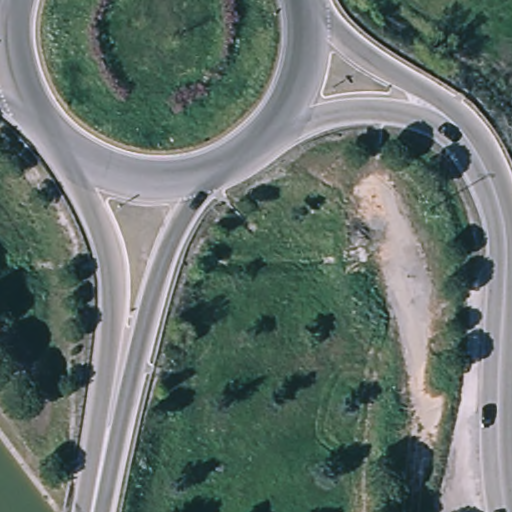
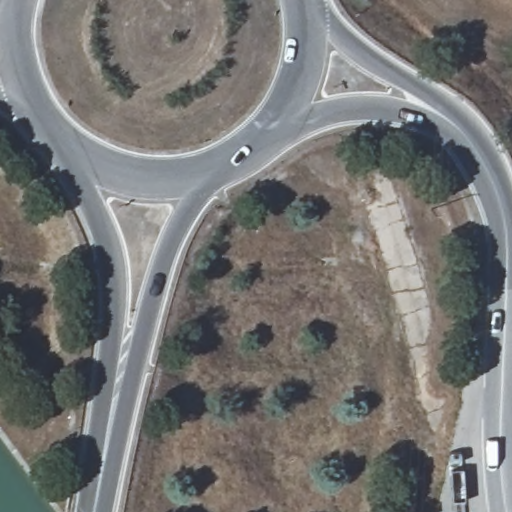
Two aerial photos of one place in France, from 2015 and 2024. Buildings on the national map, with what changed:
[]

